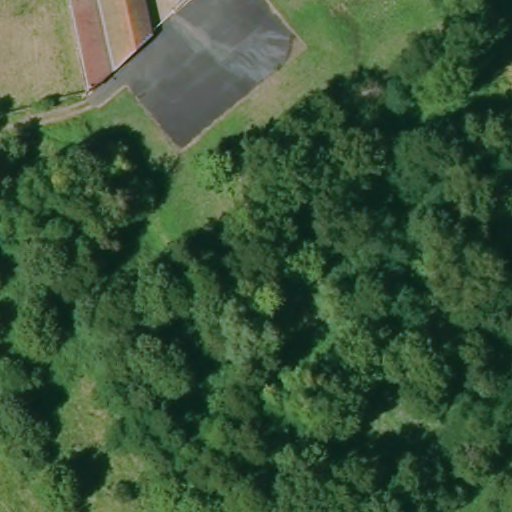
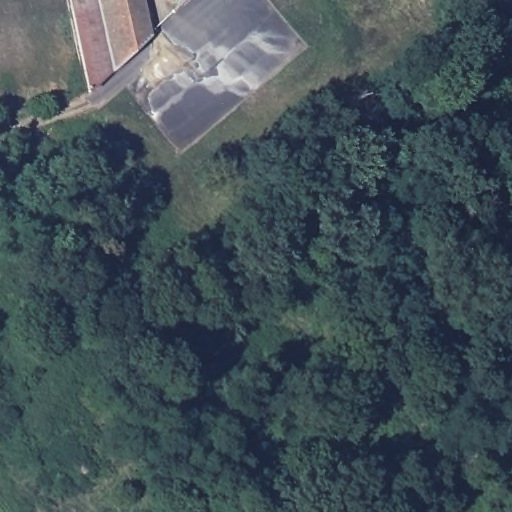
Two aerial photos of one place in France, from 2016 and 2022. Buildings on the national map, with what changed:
unchanged [(146,31),(82,91),(65,0),(139,0),(146,31)]

